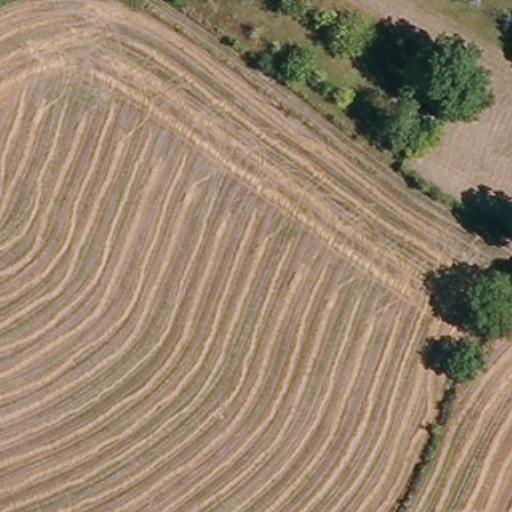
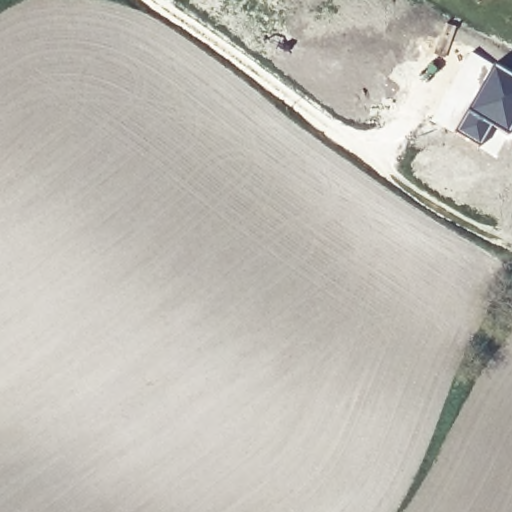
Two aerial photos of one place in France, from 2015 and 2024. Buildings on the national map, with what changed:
new [(492,64),(512,76),(512,128),(507,134),(492,126),(479,146),(453,130),(492,64)]

